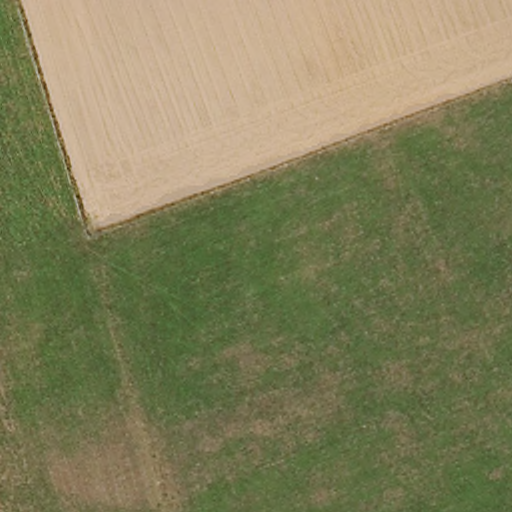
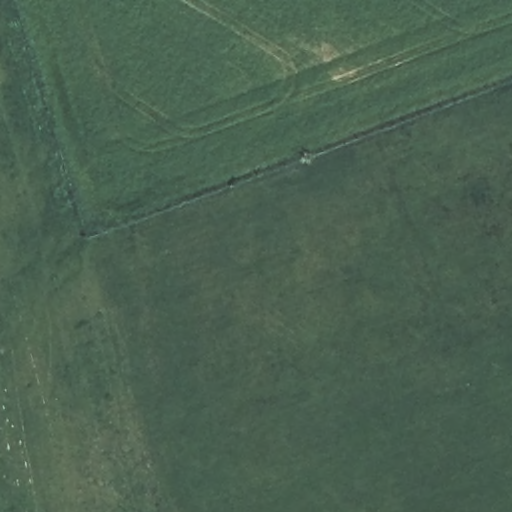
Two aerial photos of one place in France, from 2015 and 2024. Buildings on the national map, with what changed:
[]

